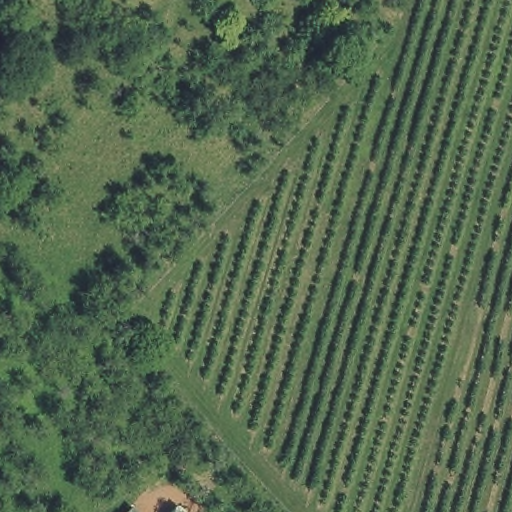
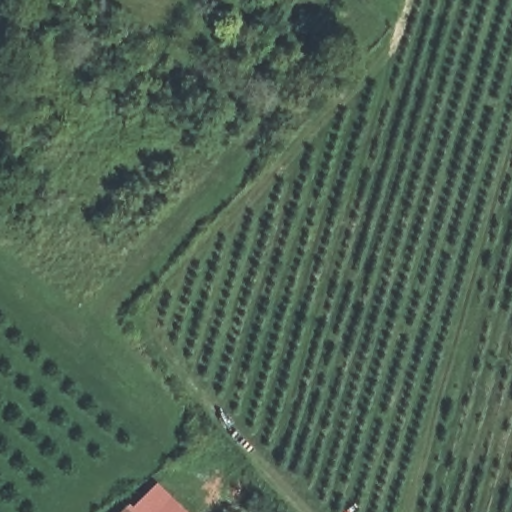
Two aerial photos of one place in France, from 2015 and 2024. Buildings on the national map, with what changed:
new [(133,507),(155,483),(185,512),(120,512),(129,502),(133,507)]

